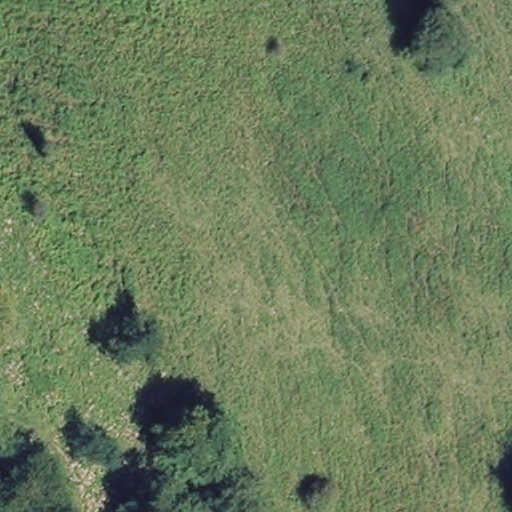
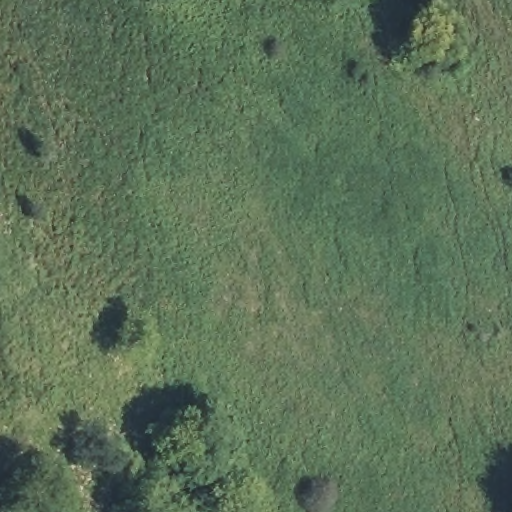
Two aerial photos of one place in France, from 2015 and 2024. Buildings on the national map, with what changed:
[]

